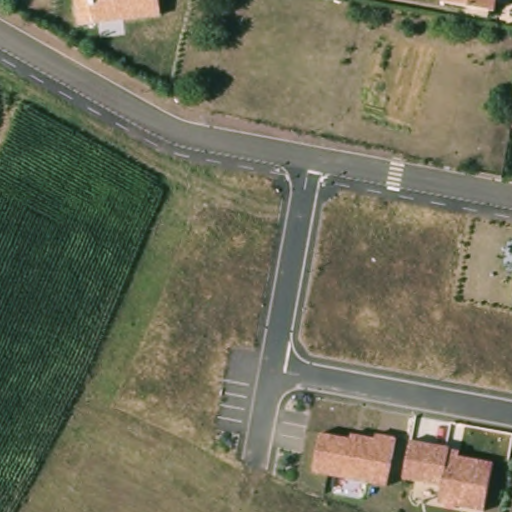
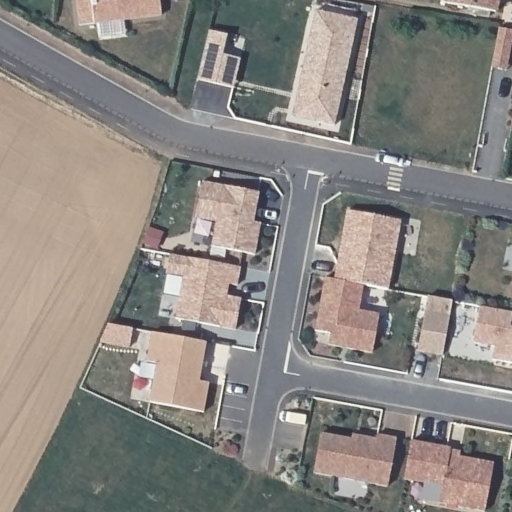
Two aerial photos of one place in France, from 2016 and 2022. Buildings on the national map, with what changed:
unchanged [(163,14),(78,27),(75,0),(161,0),(163,14)]
unchanged [(496,9),(445,1),(445,0),(497,0),(496,9)]
new [(316,10),(358,19),(336,125),(318,121),(292,115),(296,100),(316,10)]
new [(498,27),(512,30),(512,36),(506,70),(491,67),(498,27)]
new [(216,83),(197,79),(209,30),(227,34),(216,83)]
new [(222,55),(240,59),(233,87),(216,83),(222,55)]
new [(259,192),(256,210),(254,221),(261,222),(255,254),(212,245),(216,221),(196,217),(202,181),(259,192)]
new [(347,210),(401,220),(388,288),(363,284),(334,278),(347,210)]
new [(170,254),(241,266),(237,285),(222,282),(221,295),(241,298),(236,329),(176,318),(184,274),(167,270),(170,254)]
new [(325,277),(363,284),(359,310),(380,313),(372,351),(328,343),(331,332),(316,330),(325,277)]
new [(480,305),(512,311),(512,316),(510,326),(512,327),(512,363),(493,359),(496,346),(473,342),(480,305)]
new [(425,310),(450,315),(442,355),(418,350),(425,310)]
new [(152,331),(206,341),(199,380),(209,382),(203,411),(149,401),(156,363),(146,361),(152,331)]
unchanged [(388,488),(313,475),(320,434),(352,438),(353,434),(377,437),(377,433),(397,436),(388,488)]
unchanged [(440,501),(442,485),(404,478),(412,439),(461,448),(460,455),(493,462),(483,510),(440,501)]

